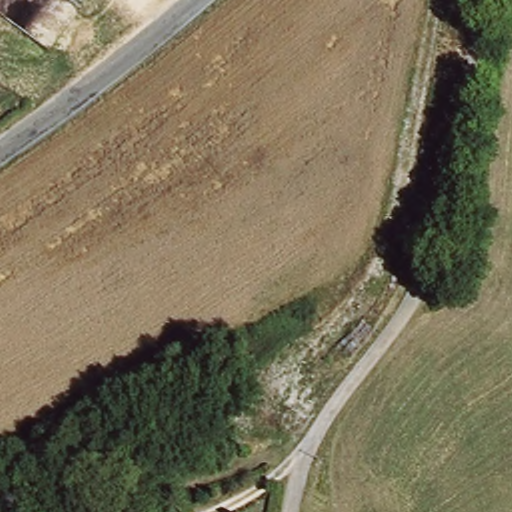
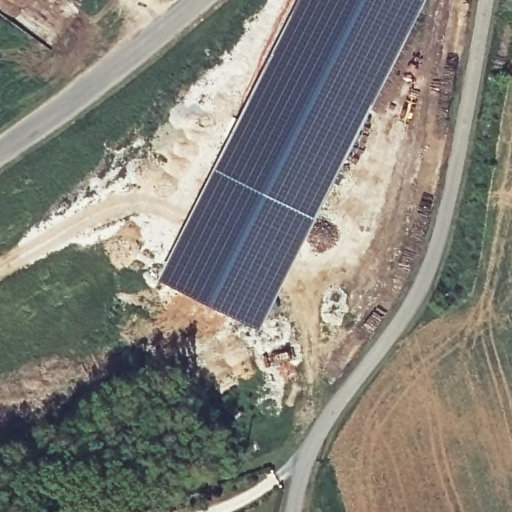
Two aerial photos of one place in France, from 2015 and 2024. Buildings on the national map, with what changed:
new [(273,49),(299,0),(429,0),(318,217),(263,331),(160,280),(273,49)]

